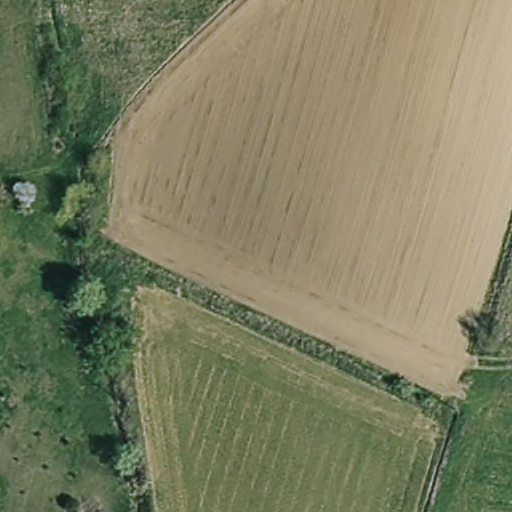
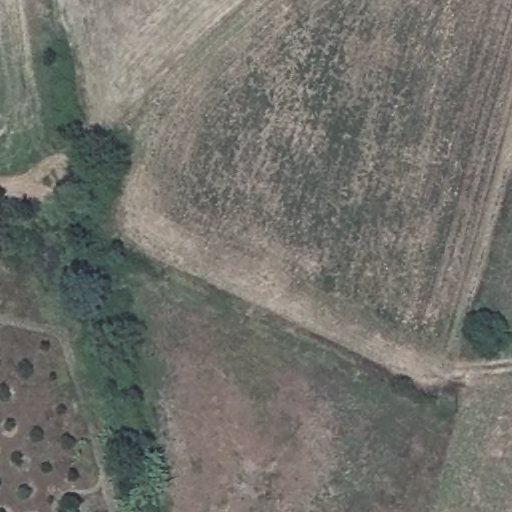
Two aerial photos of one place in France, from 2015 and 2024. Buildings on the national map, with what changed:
[]

